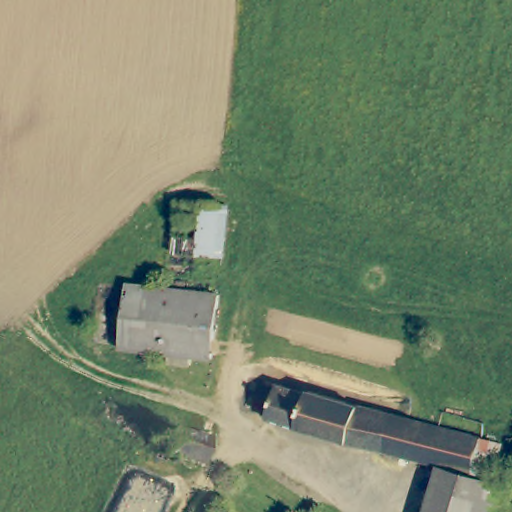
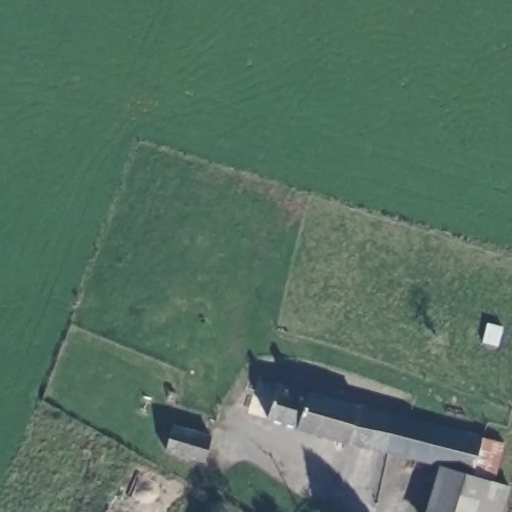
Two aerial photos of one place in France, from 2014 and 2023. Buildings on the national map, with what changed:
demolished [(177,202),(227,207),(223,257),(173,252),(177,202)]
demolished [(127,284),(165,288),(220,295),(212,359),(120,348),(127,284)]
unchanged [(493,480),(472,473),(267,419),(277,386),(482,437),(503,442),(493,480)]
unchanged [(211,437),(205,462),(166,451),(167,444),(160,442),(164,432),(171,434),(172,427),(211,437)]
unchanged [(447,468),(492,482),(508,487),(501,512),(433,512),(447,468)]

